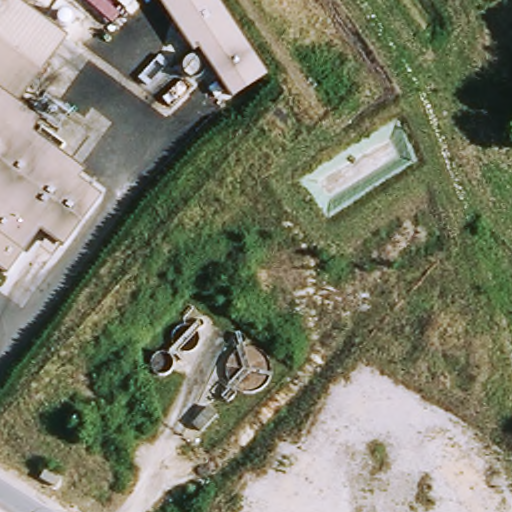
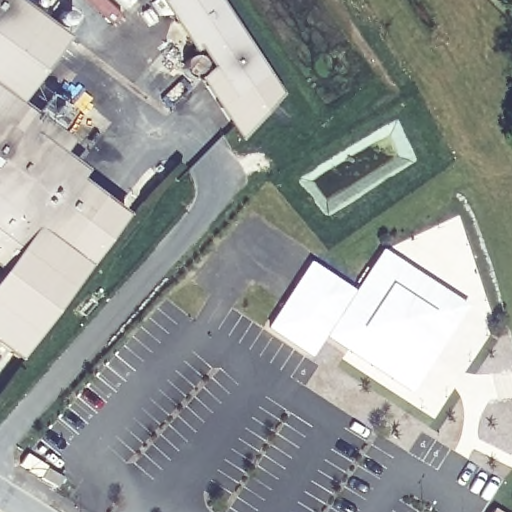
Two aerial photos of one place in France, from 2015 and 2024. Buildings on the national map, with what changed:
unchanged [(70,38),(21,105),(35,115),(49,95),(73,112),(60,131),(43,119),(34,133),(87,171),(80,181),(103,197),(68,249),(39,232),(25,251),(8,275),(0,270),(0,0),(19,0),(70,38)]
new [(88,0),(136,0),(115,24),(88,0)]
unchanged [(270,76),(233,100),(200,48),(192,52),(158,0),(220,0),(270,76)]
new [(282,94),(239,141),(197,80),(211,66),(233,100),(270,76),(282,94)]
new [(3,272),(8,275),(25,251),(39,232),(68,249),(103,197),(126,216),(20,360),(0,347),(0,276),(3,272)]
new [(326,336),(311,358),(267,328),(309,262),(355,291),(382,250),(467,307),(411,391),(326,336)]
demolished [(197,386),(209,398),(192,414),(181,403),(197,386)]

